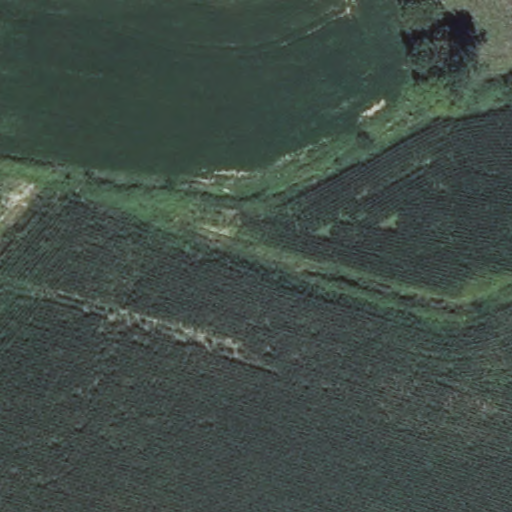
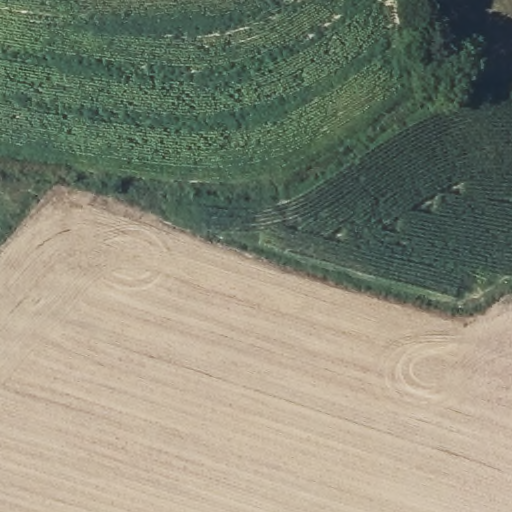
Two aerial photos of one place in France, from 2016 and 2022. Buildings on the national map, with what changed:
[]

